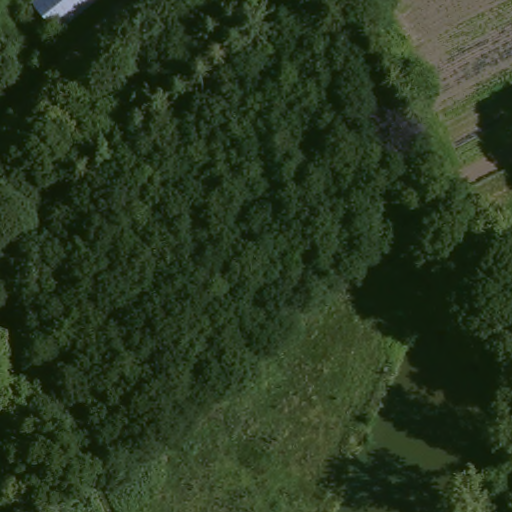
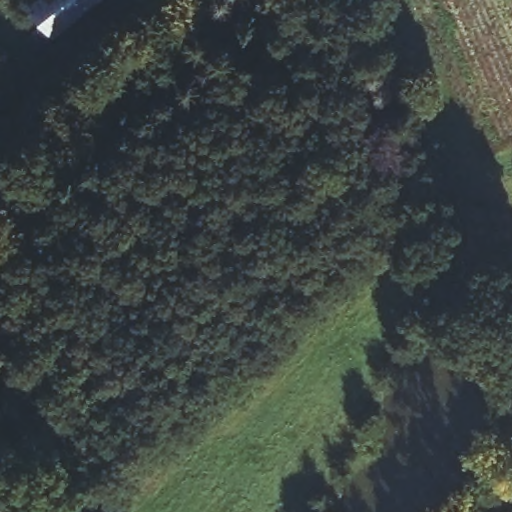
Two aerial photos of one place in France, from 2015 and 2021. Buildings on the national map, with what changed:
unchanged [(32,8),(42,0),(98,0),(53,38),(32,8)]

